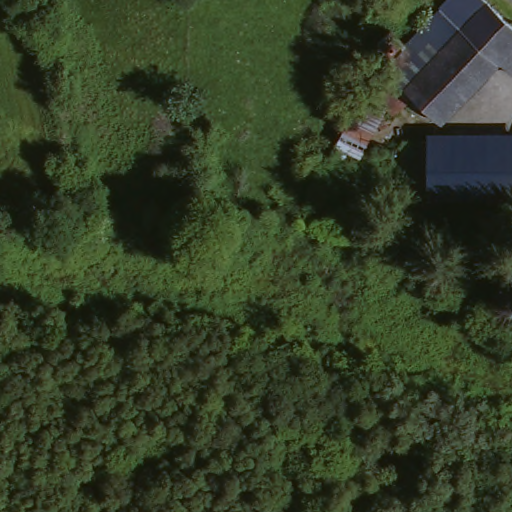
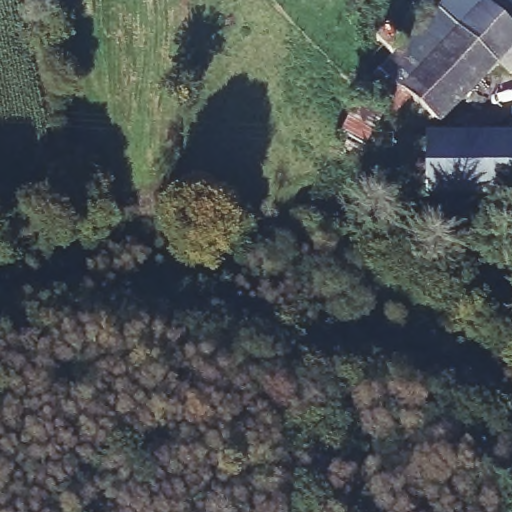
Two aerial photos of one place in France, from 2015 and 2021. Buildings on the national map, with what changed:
unchanged [(382,72),(437,12),(450,0),(479,0),(485,4),(512,26),(512,71),(510,74),(497,63),(495,65),(445,122),(434,121),(412,101),(386,76),(382,72)]
unchanged [(380,135),(355,111),(386,76),(412,101),(380,135)]
unchanged [(347,124),(371,135),(335,209),(365,218),(360,250),(335,236),(290,225),(347,124)]
unchanged [(512,137),(512,193),(427,196),(426,139),(512,137)]
unchanged [(426,139),(427,196),(400,197),(397,140),(426,139)]
unchanged [(393,193),(393,202),(373,203),(370,203),(370,193),(393,193)]

